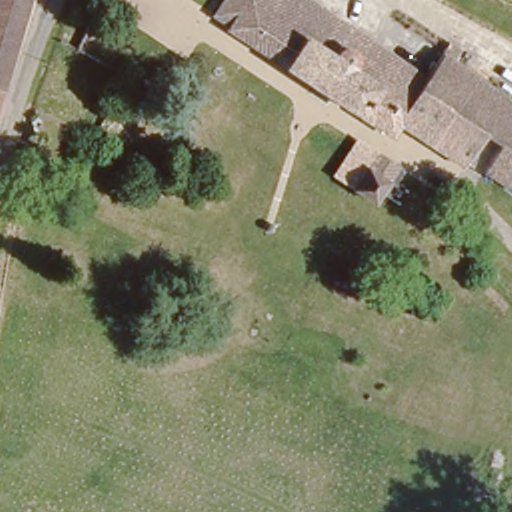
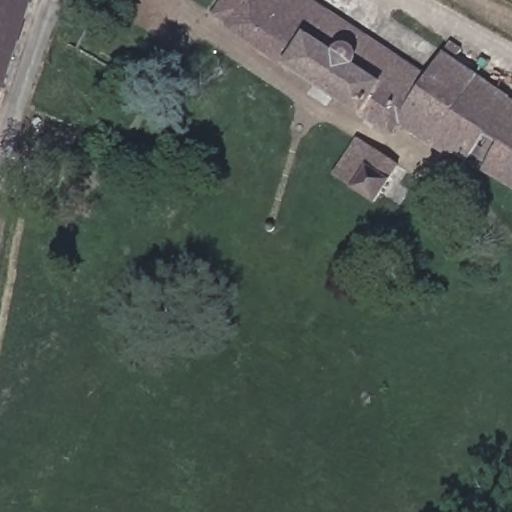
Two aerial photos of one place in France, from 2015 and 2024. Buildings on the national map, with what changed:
unchanged [(1,90),(0,89),(0,0),(29,0),(1,90)]
unchanged [(429,47),(512,103),(512,186),(507,192),(473,170),(489,142),(476,134),(455,167),(386,123),(377,132),(348,114),(247,47),(221,29),(222,25),(207,12),(215,0),(306,0),(413,71),(429,47)]
unchanged [(1,90),(0,93),(0,89),(1,90)]
unchanged [(343,190),(367,151),(387,163),(380,175),(388,183),(383,192),(371,187),(363,202),(343,190)]
unchanged [(512,195),(507,192),(512,186),(512,195)]

